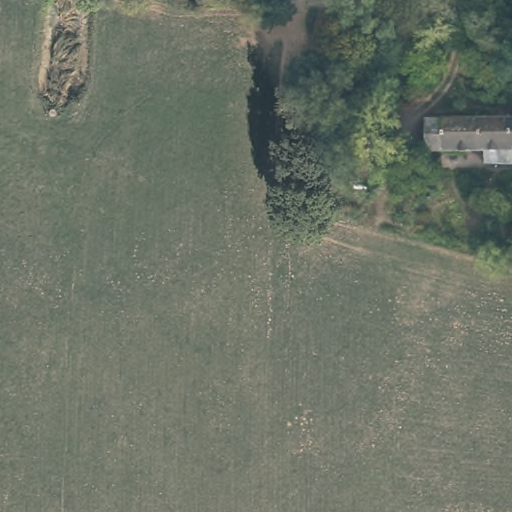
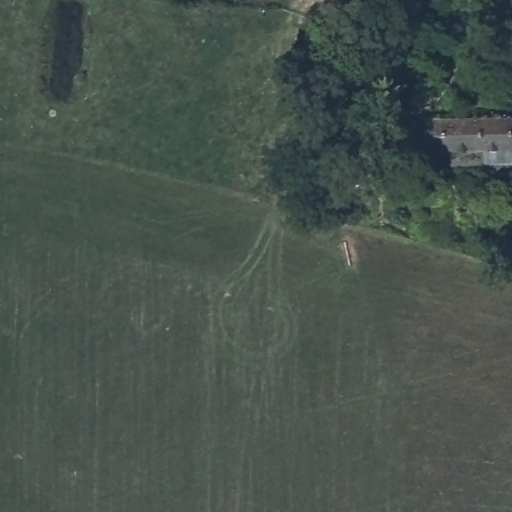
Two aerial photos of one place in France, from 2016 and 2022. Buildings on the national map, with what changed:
unchanged [(352,82),(351,75),(353,70),(357,67),(363,65),(367,67),(367,82),(352,82)]
unchanged [(467,166),(467,143),(412,140),(413,111),(503,114),(502,167),(467,166)]
unchanged [(512,115),(512,167),(502,167),(503,114),(512,115)]
unchanged [(370,187),(345,184),(350,144),(374,148),(370,187)]

